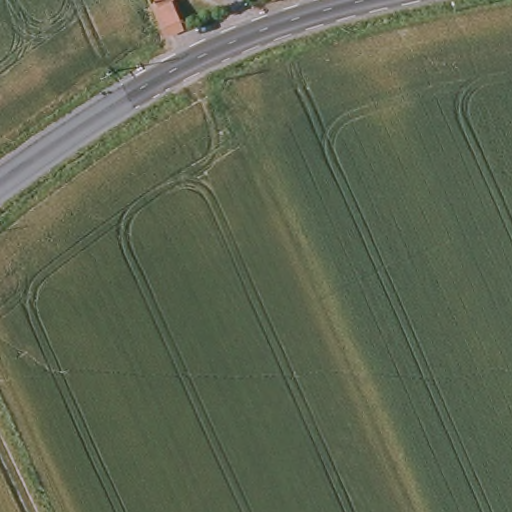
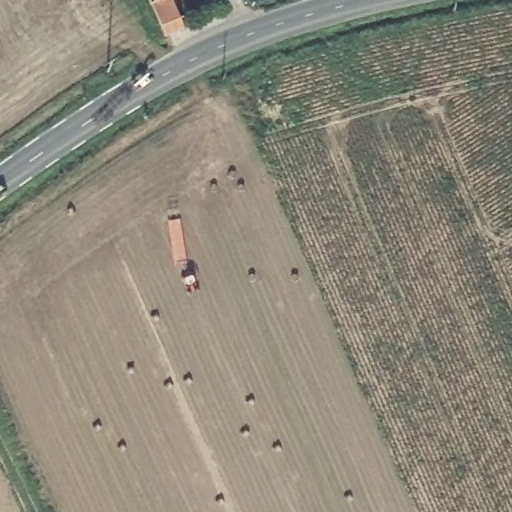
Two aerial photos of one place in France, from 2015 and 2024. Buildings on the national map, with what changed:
unchanged [(176,0),(170,2),(183,34),(165,42),(151,10),(156,7),(153,0),(176,0)]

